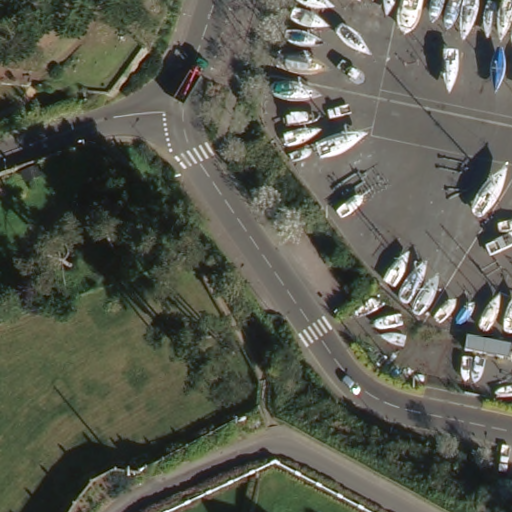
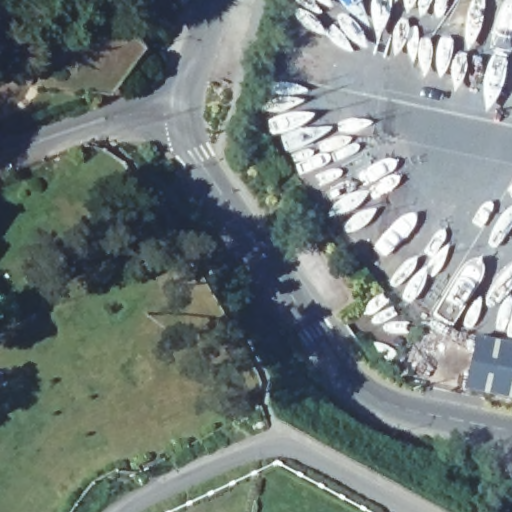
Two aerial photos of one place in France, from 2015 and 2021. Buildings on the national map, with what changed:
new [(512,398),(462,388),(475,333),(512,341),(512,398)]

